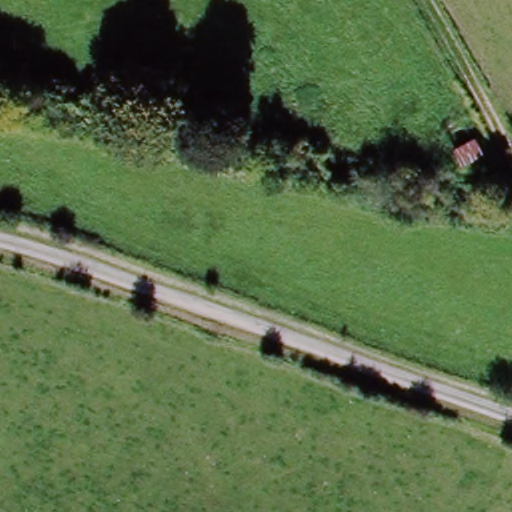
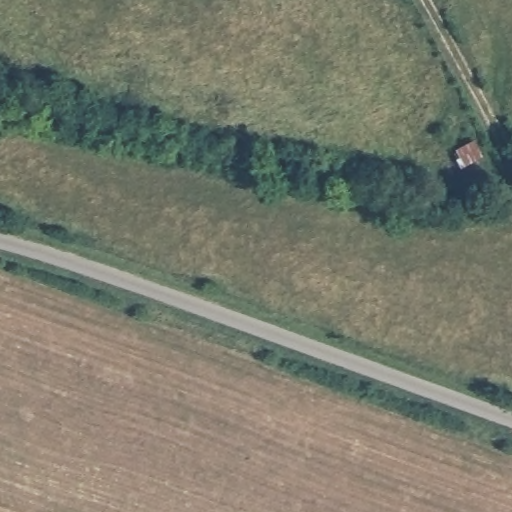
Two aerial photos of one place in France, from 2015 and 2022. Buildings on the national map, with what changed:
unchanged [(476,138),(484,158),(460,169),(451,148),(476,138)]

